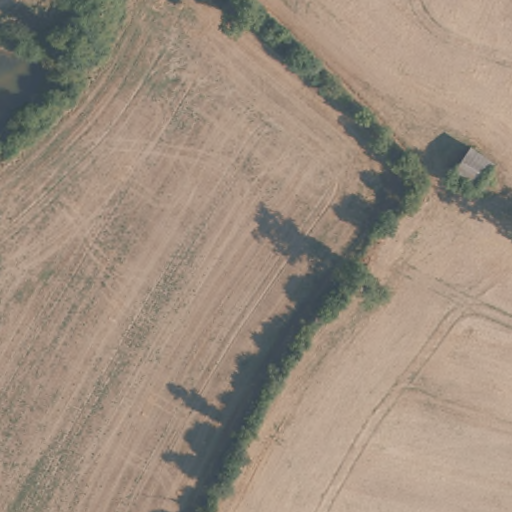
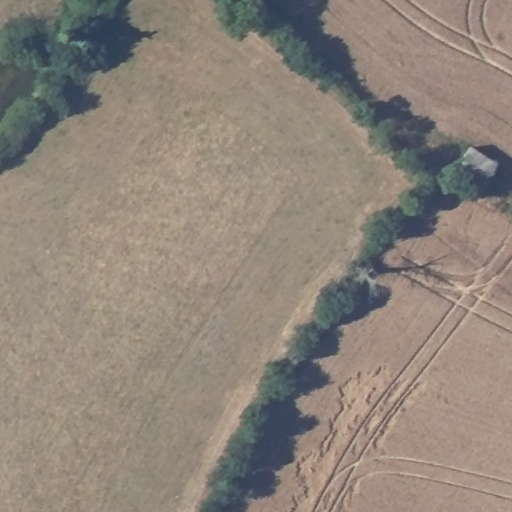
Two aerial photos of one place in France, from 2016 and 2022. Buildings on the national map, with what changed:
unchanged [(498,163),(487,188),(461,176),(472,152),(498,163)]

